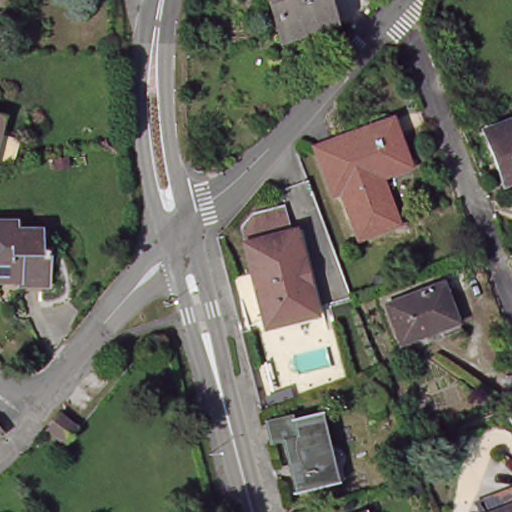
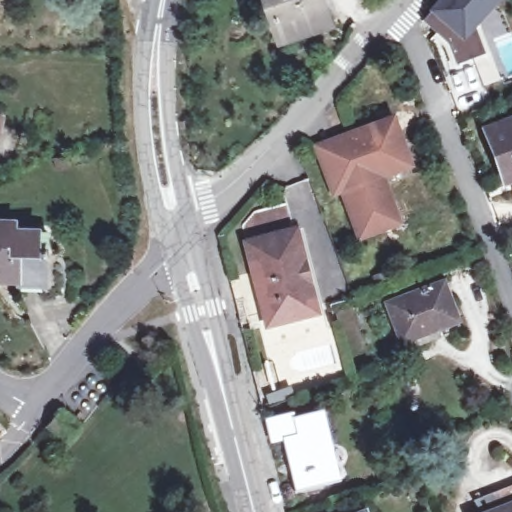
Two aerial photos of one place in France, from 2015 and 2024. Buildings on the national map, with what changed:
unchanged [(266,0),(324,0),(331,23),(284,38),(273,5),(268,7),(266,0)]
new [(440,2),(442,3),(445,0),(494,0),(474,23),(486,54),(457,65),(449,45),(423,21),(440,2)]
unchanged [(0,122),(0,112),(2,113),(0,122)]
unchanged [(405,160),(373,172),(392,222),(360,235),(340,184),(332,187),(321,158),(317,146),(348,135),(390,119),(405,160)]
unchanged [(506,181),(487,130),(512,121),(512,179),(506,181)]
unchanged [(248,239),(260,227),(293,214),(301,243),(252,255),(248,239)]
unchanged [(16,228),(39,228),(40,248),(48,249),(48,256),(46,256),(46,282),(20,281),(20,275),(2,274),(2,278),(0,278),(0,221),(15,221),(16,228)]
unchanged [(273,338),(252,255),(301,243),(322,326),(273,338)]
unchanged [(376,277),(386,274),(389,280),(379,284),(376,277)]
unchanged [(405,342),(389,302),(442,282),(457,322),(405,342)]
unchanged [(257,385),(250,387),(247,373),(253,372),(257,385)]
unchanged [(50,427),(62,412),(78,424),(66,440),(50,427)]
unchanged [(298,491),(298,489),(285,439),(272,442),(266,419),(293,413),(295,417),(310,413),(310,417),(320,415),(335,479),(312,484),(312,486),(313,488),(298,491)]
unchanged [(0,433),(0,426),(3,430),(0,433)]
unchanged [(493,495),(512,488),(512,512),(483,512),(497,506),(493,495)]

